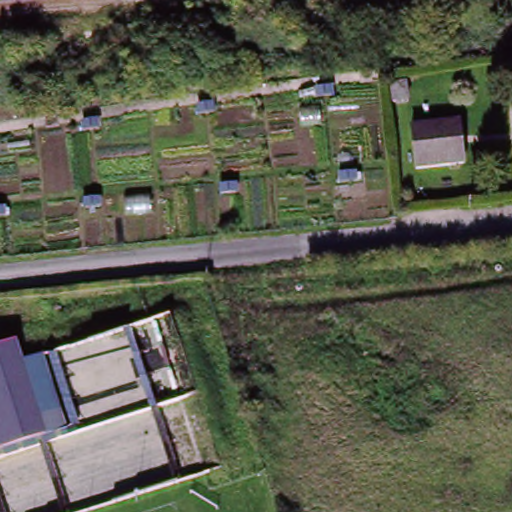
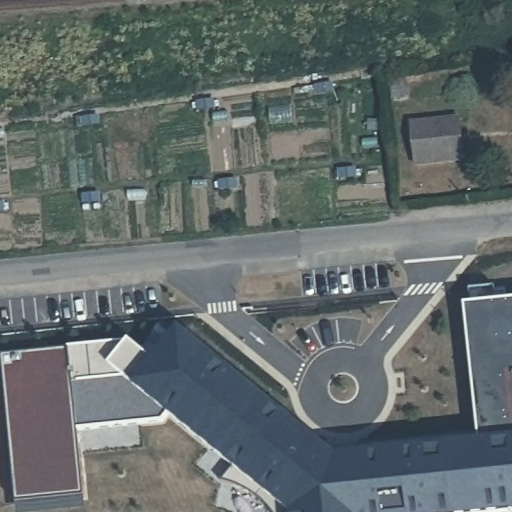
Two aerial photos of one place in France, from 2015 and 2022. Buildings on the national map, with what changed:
demolished [(507,78),(512,77),(512,108),(511,108),(507,78)]
unchanged [(412,125),(459,120),(464,162),(416,167),(412,125)]
new [(512,512),(275,512),(273,508),(261,498),(245,487),(222,479),(229,466),(171,417),(78,429),(80,461),(15,468),(3,356),(69,348),(126,343),(132,344),(156,361),(183,330),(337,457),(339,452),(359,450),(359,444),(479,432),(467,307),(512,303),(512,512)]
demolished [(18,340),(25,359),(27,364),(0,373),(0,346),(18,340)]
demolished [(5,425),(0,410),(0,373),(27,364),(25,359),(47,353),(71,432),(0,455),(0,427),(5,425)]
demolished [(5,425),(0,427),(0,410),(5,425)]

